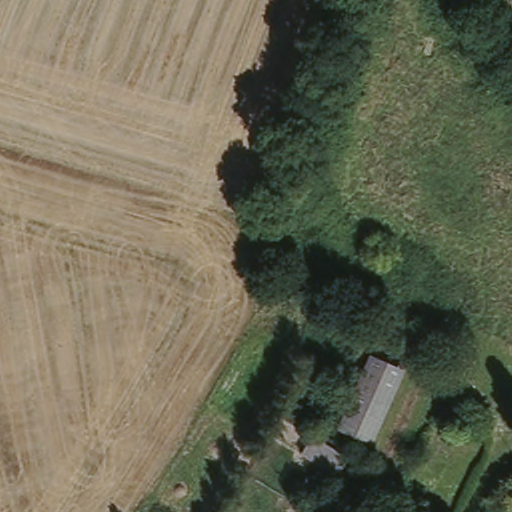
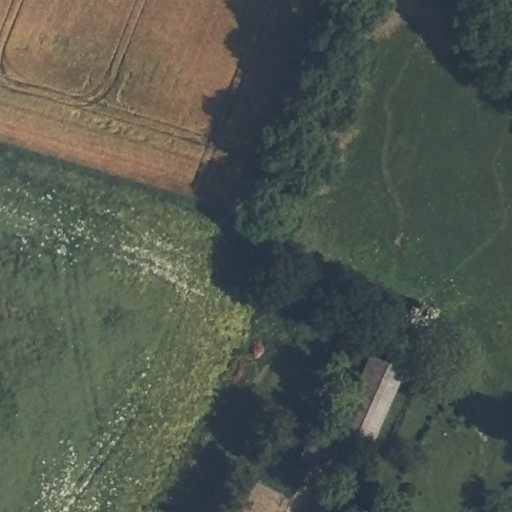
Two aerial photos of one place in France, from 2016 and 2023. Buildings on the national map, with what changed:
unchanged [(365,357),(400,371),(385,408),(350,394),(365,357)]
unchanged [(350,394),(385,408),(370,446),(336,432),(350,394)]
unchanged [(310,436),(337,452),(327,471),(296,454),(310,436)]

